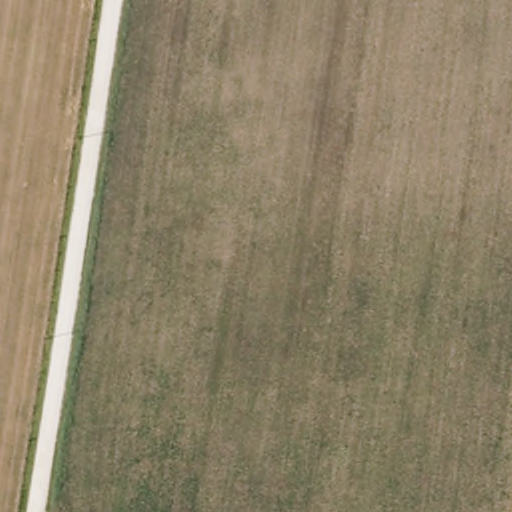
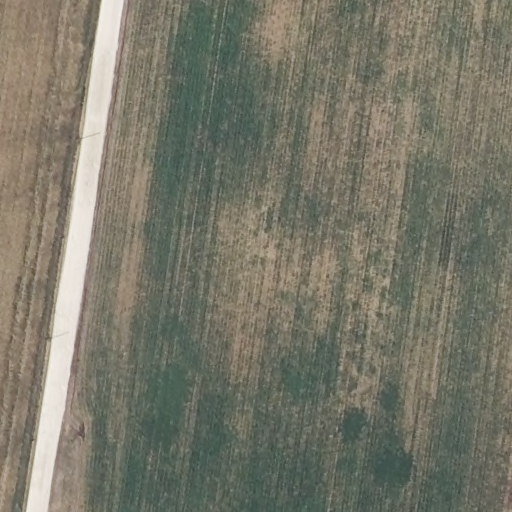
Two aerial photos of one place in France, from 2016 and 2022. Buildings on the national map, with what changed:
[]

